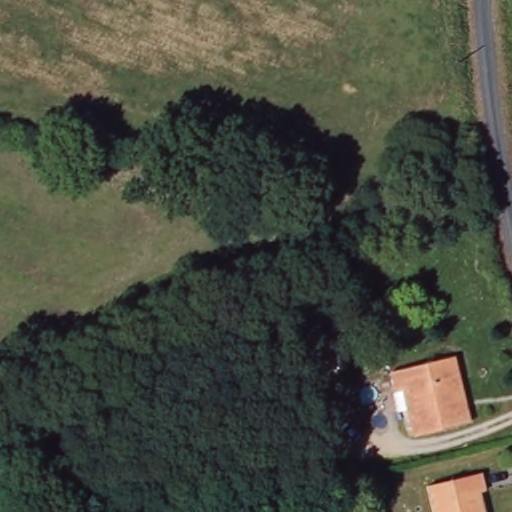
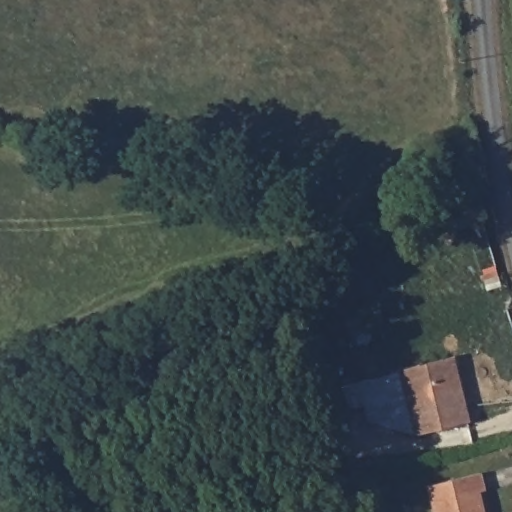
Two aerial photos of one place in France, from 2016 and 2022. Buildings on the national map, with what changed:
unchanged [(470,419),(415,435),(404,389),(396,392),(388,373),(452,354),(470,419)]
unchanged [(490,493),(482,494),(486,512),(437,512),(430,488),(484,474),(490,493)]

